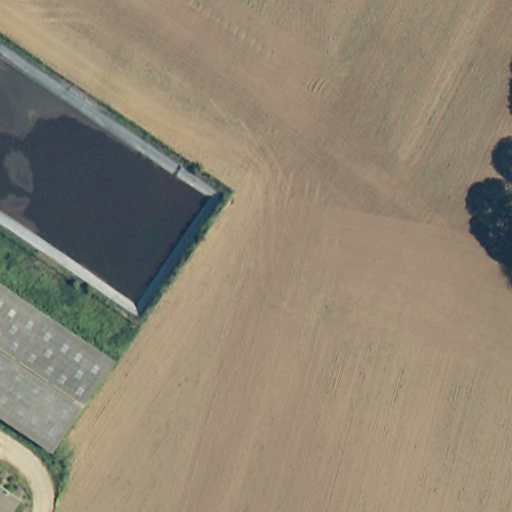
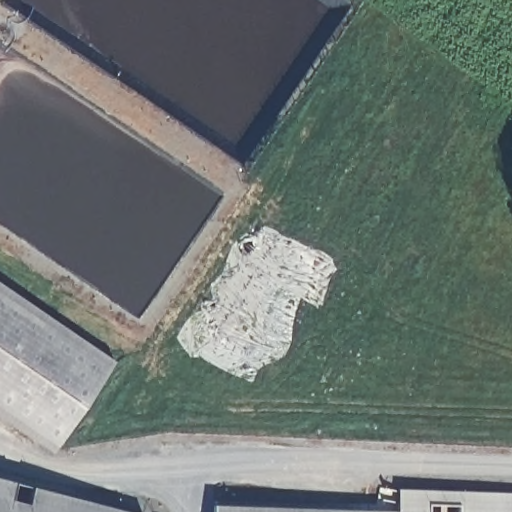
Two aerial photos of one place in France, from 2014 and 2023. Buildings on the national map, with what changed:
unchanged [(39,304),(117,359),(55,449),(17,422),(0,411),(0,277),(22,292),(39,304)]
new [(0,512),(0,479),(128,512),(0,512)]
demolished [(20,498),(11,512),(0,512),(0,485),(1,485),(20,498)]
new [(399,490),(512,494),(512,512),(214,512),(215,506),(398,510),(399,490)]

